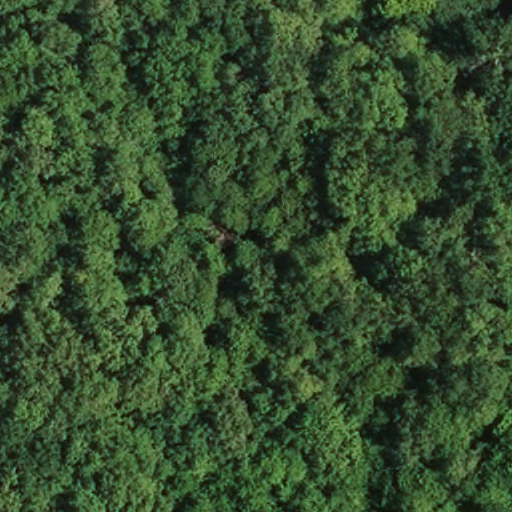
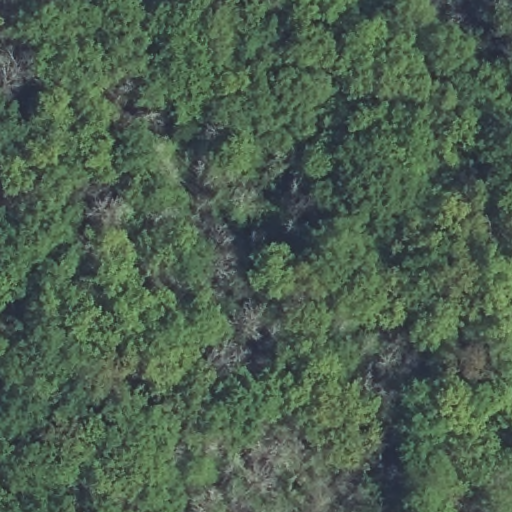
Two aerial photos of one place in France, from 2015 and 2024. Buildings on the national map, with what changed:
[]

